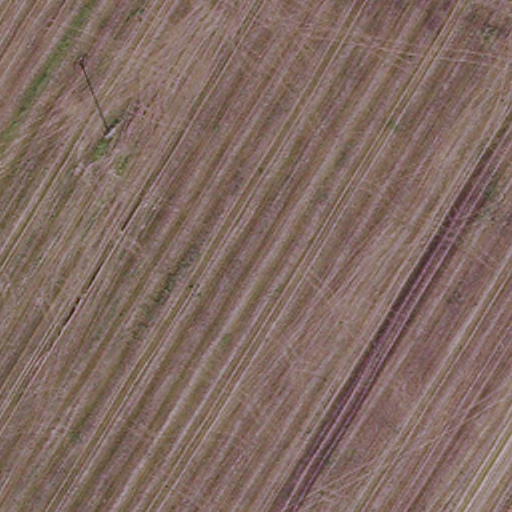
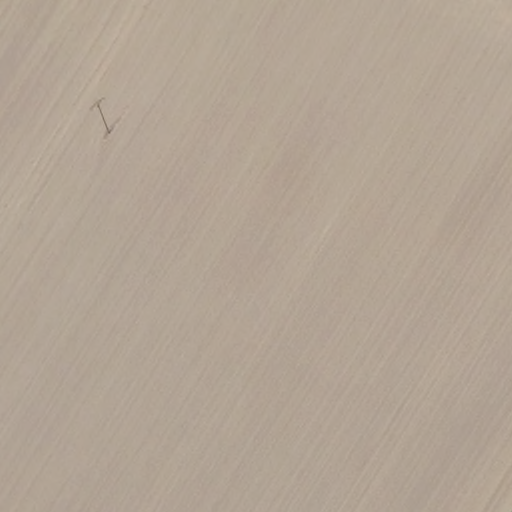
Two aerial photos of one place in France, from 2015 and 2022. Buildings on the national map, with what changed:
[]

